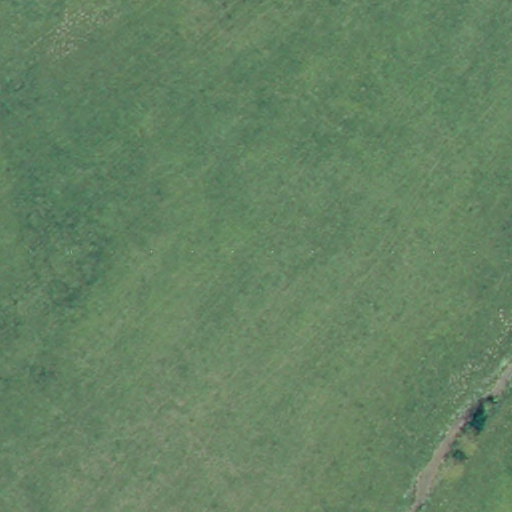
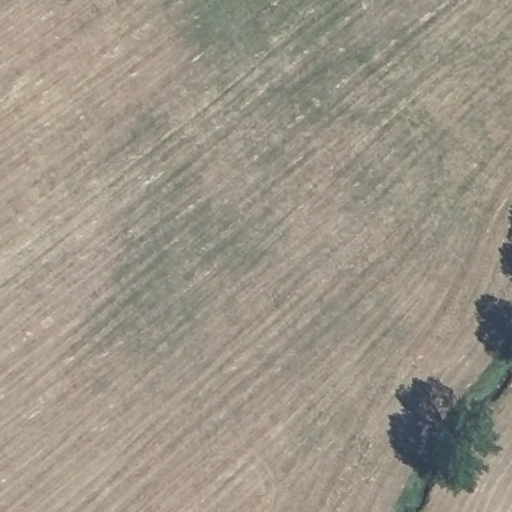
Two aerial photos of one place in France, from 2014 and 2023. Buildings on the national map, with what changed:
[]

